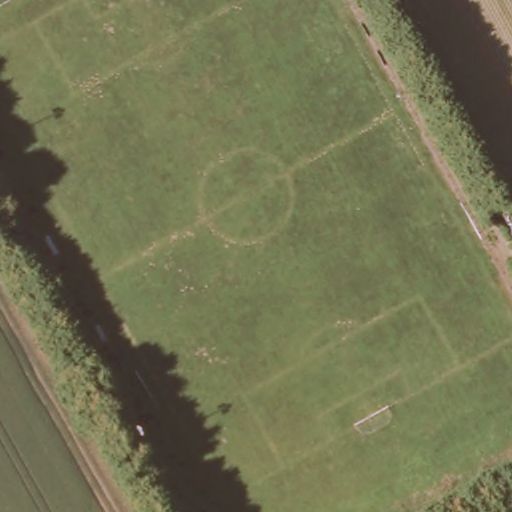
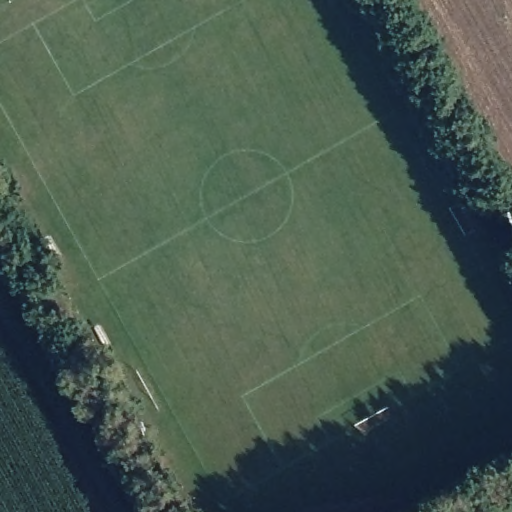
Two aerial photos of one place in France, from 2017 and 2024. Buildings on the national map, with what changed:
unchanged [(72,337),(36,276),(46,268),(82,330),(72,337)]

